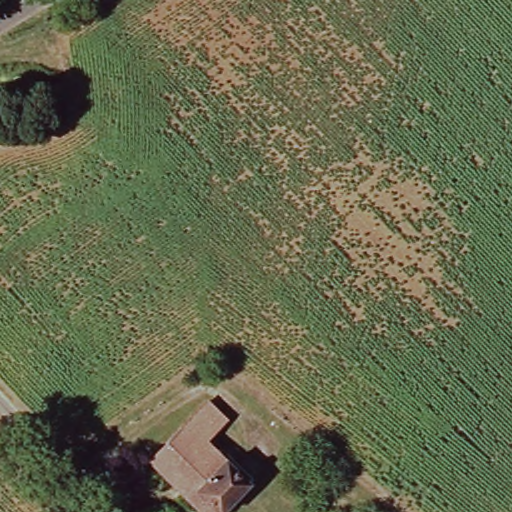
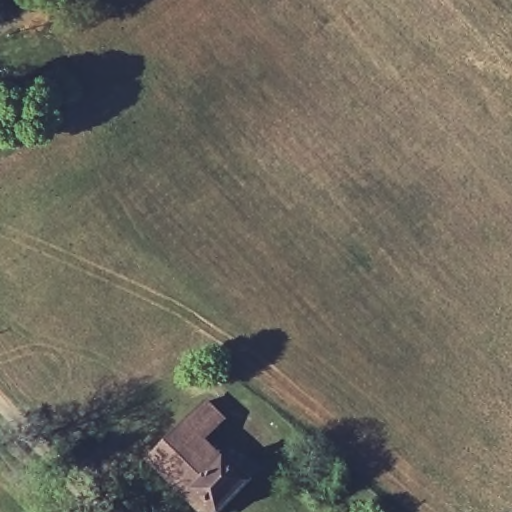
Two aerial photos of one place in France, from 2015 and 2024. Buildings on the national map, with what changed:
unchanged [(230,507),(170,444),(197,419),(216,402),(233,419),(215,437),(257,481),(230,507)]
unchanged [(159,455),(170,444),(230,507),(224,512),(215,512),(159,455)]

